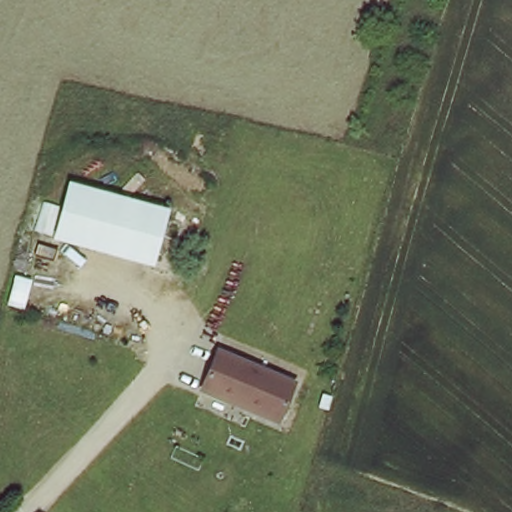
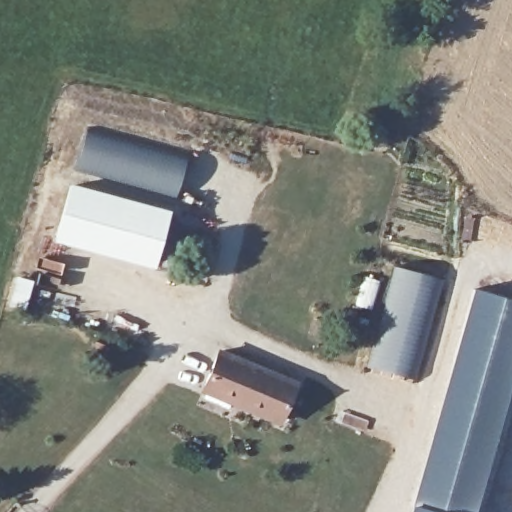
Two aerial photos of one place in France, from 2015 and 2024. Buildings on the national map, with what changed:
new [(153,167),(183,172),(176,197),(146,189),(153,167)]
unchanged [(153,264),(58,238),(71,186),(166,212),(153,264)]
new [(400,266),(446,280),(418,380),(372,367),(400,266)]
new [(512,302),(512,391),(478,512),(412,512),(473,290),(512,302)]
unchanged [(281,424),(241,408),(243,402),(206,387),(220,353),(298,386),(281,424)]

